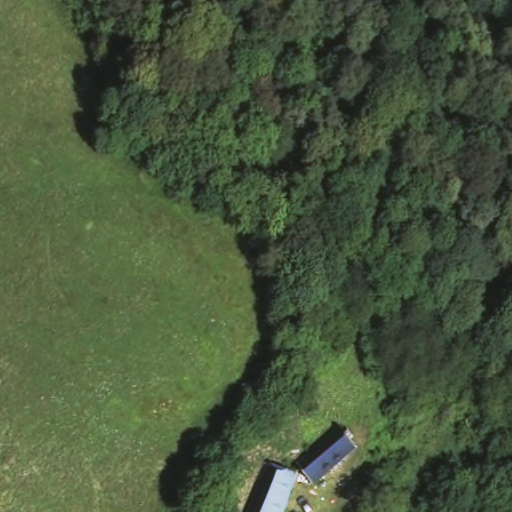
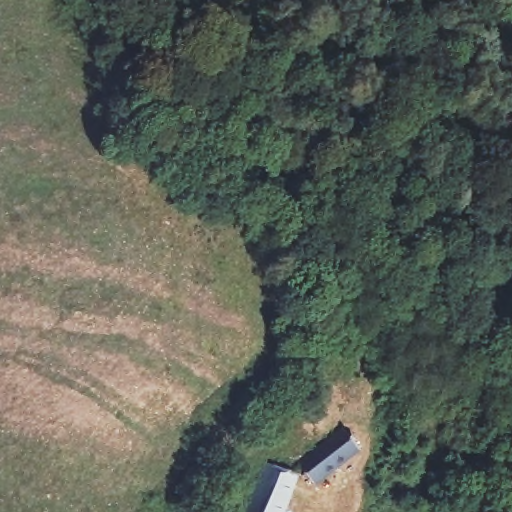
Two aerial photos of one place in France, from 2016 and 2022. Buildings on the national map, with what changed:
unchanged [(321,433),(342,419),(357,440),(312,472),(297,451),(321,433)]
unchanged [(293,473),(279,512),(240,512),(258,461),(293,473)]

